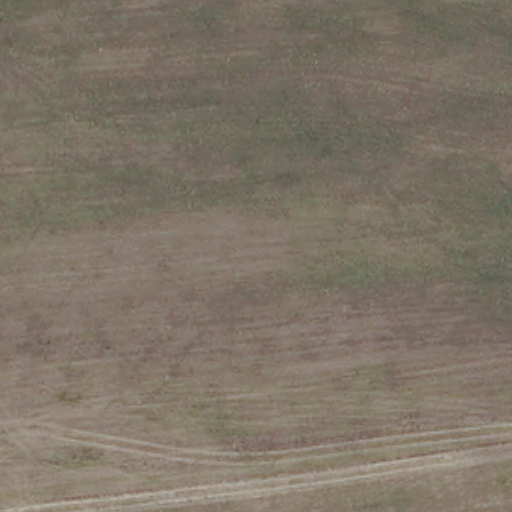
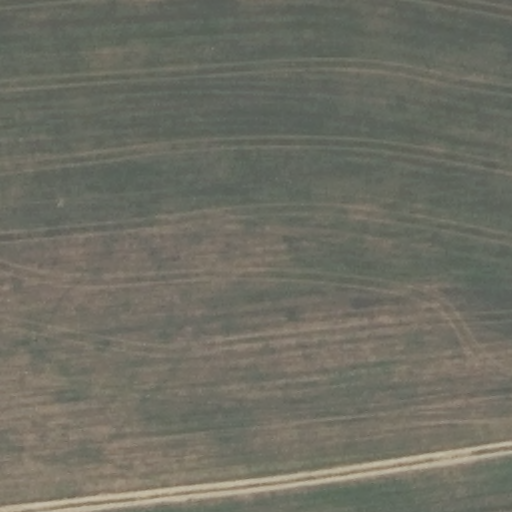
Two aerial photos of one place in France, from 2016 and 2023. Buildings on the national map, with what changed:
[]

